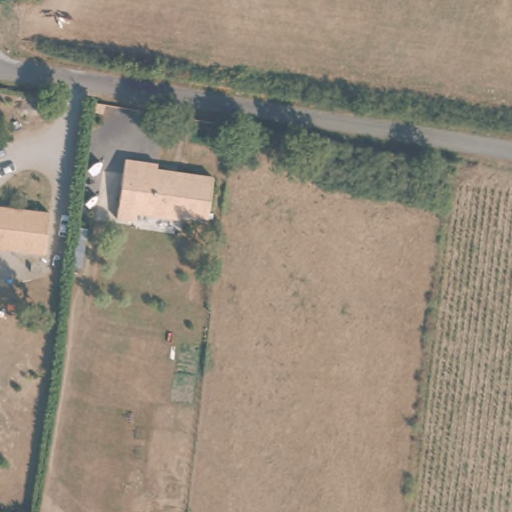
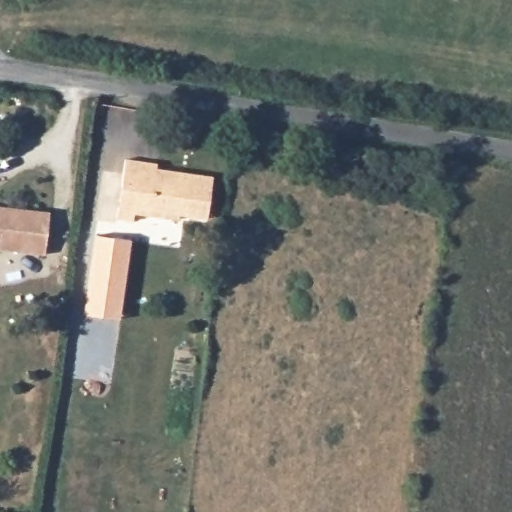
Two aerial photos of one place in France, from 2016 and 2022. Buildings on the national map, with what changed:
unchanged [(208,174),(204,214),(175,210),(174,215),(129,210),(128,217),(113,215),(120,156),(153,160),(152,166),(208,174)]
unchanged [(0,250),(0,209),(50,215),(46,255),(0,250)]
new [(119,320),(82,314),(94,235),(128,239),(119,320)]

